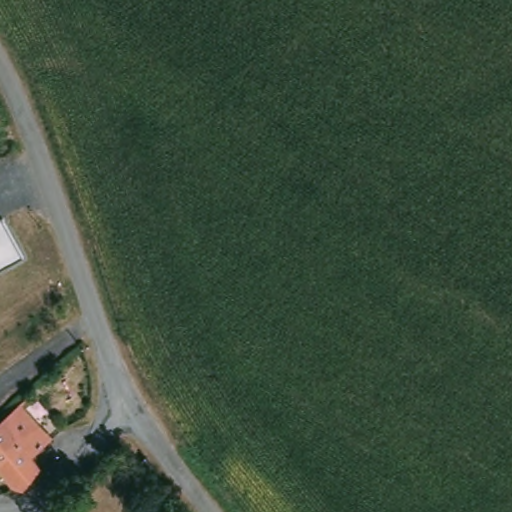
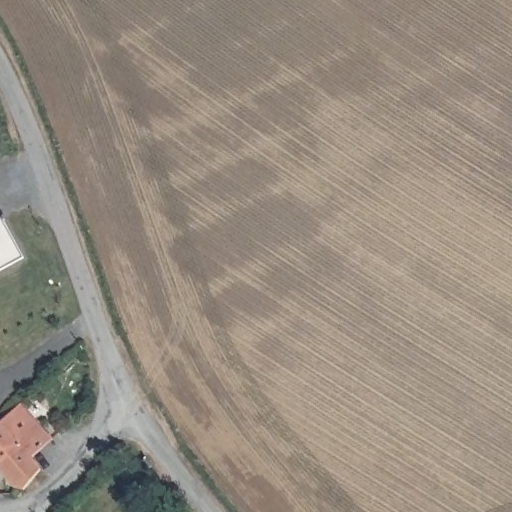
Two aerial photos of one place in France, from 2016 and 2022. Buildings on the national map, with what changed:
unchanged [(0,219),(2,217),(24,257),(0,271),(0,219)]
unchanged [(12,486),(0,470),(0,427),(28,400),(34,406),(27,412),(40,426),(55,445),(34,462),(44,475),(22,490),(12,486)]

